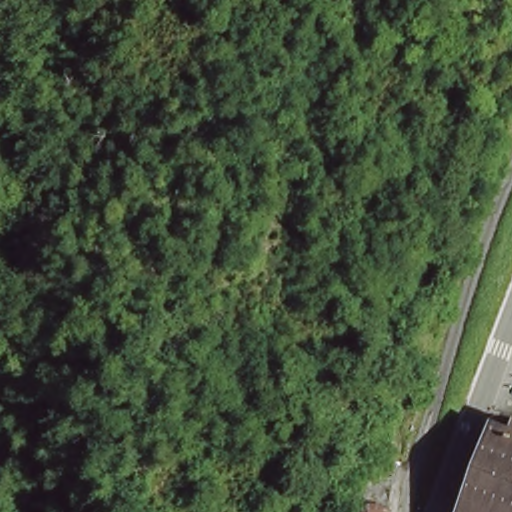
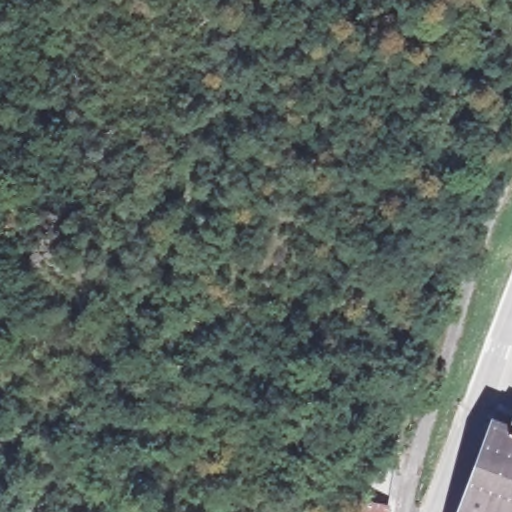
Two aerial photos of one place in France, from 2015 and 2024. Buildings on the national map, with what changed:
unchanged [(457,512),(493,422),(512,429),(512,512),(457,512)]
unchanged [(392,510),(392,512),(359,512),(360,505),(392,510)]

